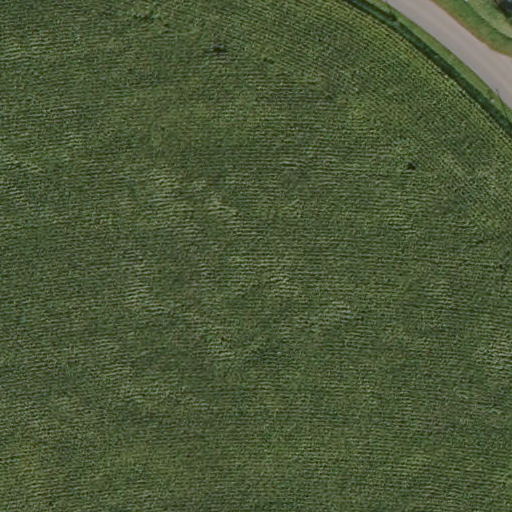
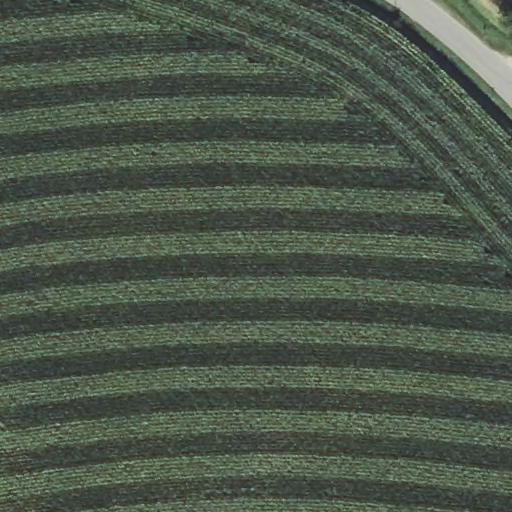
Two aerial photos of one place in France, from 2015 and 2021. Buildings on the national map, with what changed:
[]

